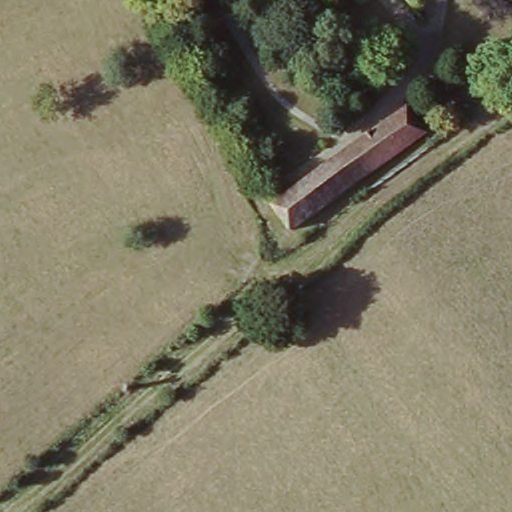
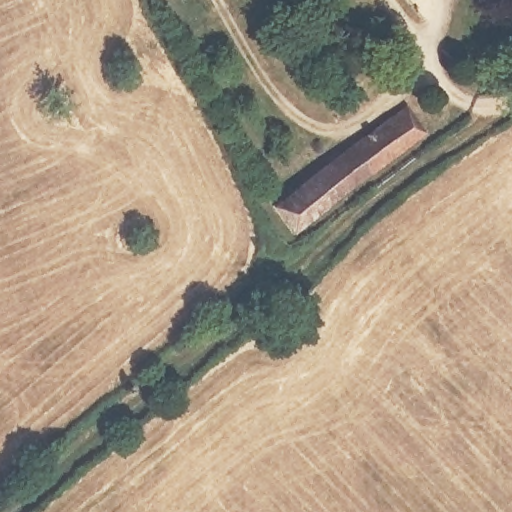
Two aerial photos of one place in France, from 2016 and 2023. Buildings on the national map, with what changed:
unchanged [(276,210),(386,128),(410,110),(429,135),(405,154),(296,236),(276,210)]

